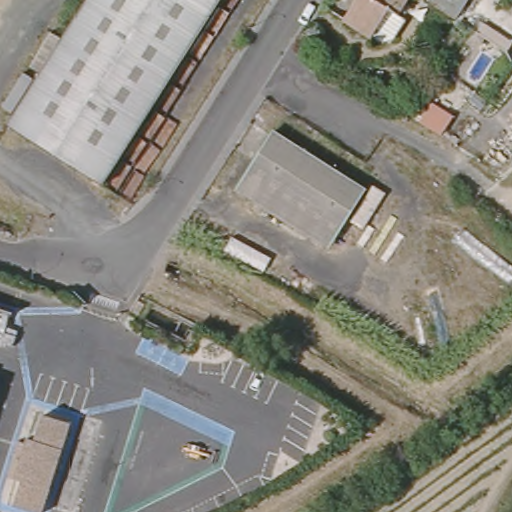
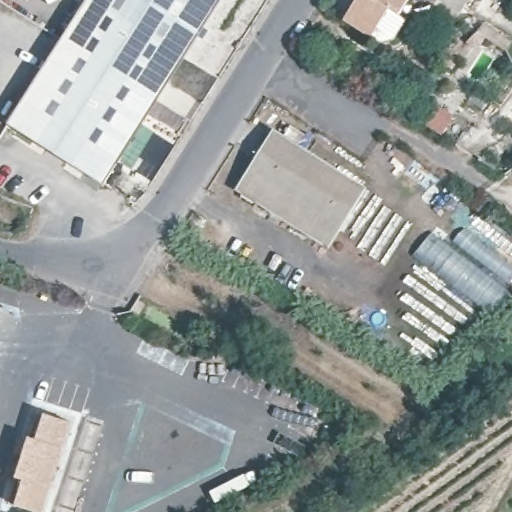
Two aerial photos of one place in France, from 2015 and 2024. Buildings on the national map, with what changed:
unchanged [(6,126),(86,0),(153,0),(203,32),(104,184),(6,126)]
unchanged [(153,0),(224,0),(203,32),(153,0)]
unchanged [(348,18),(359,0),(414,0),(403,16),(412,22),(398,39),(377,37),(348,18)]
unchanged [(424,0),(474,0),(459,22),(424,0)]
unchanged [(367,194),(336,236),(280,197),(269,213),(235,191),(275,131),(367,194)]
unchanged [(325,252),(269,213),(280,197),(336,236),(325,252)]
new [(449,247),(466,226),(512,261),(512,289),(491,317),(413,257),(432,235),(449,247)]
unchanged [(45,511),(18,502),(26,477),(18,476),(25,452),(16,450),(20,437),(29,441),(31,435),(38,437),(46,411),(73,420),(65,446),(53,485),(45,511)]

